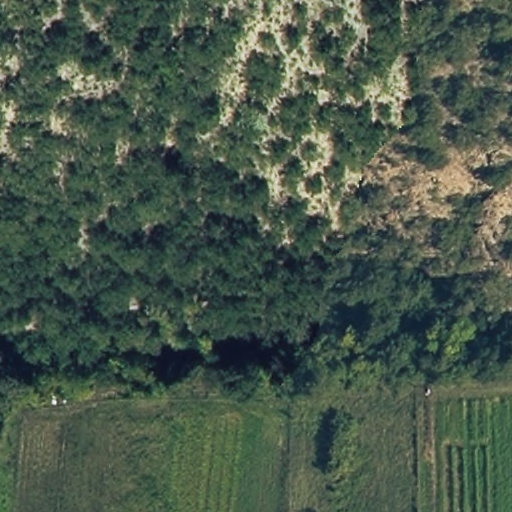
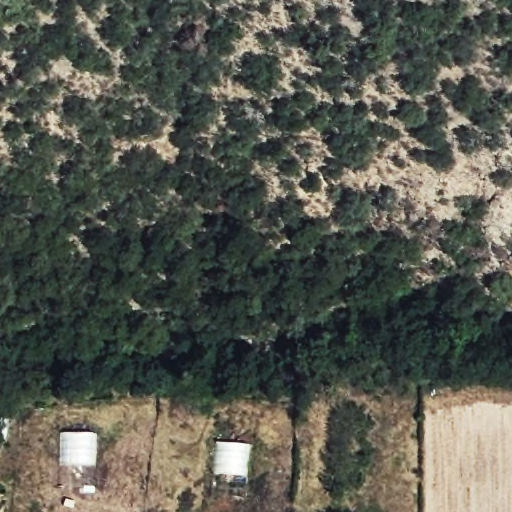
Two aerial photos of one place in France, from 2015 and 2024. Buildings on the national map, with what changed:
[]

